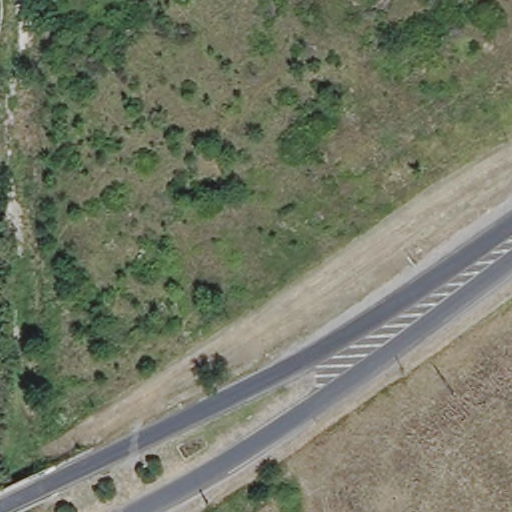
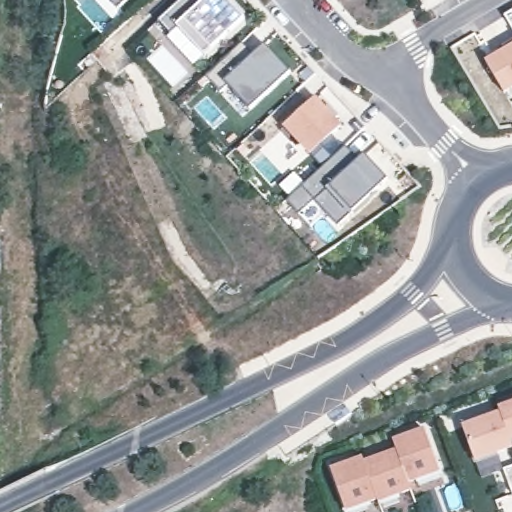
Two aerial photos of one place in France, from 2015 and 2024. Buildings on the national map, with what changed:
new [(113,4),(110,0),(127,0),(117,9),(113,4)]
new [(180,0),(200,0),(202,2),(205,0),(228,0),(245,18),(205,56),(177,27),(170,34),(157,21),(180,0)]
new [(512,11),(512,27),(505,15),(512,11)]
new [(242,42),(254,55),(265,44),(292,72),(250,110),(227,86),(220,92),(205,76),(242,42)]
new [(505,50),(503,47),(512,42),(512,90),(505,94),(485,62),(505,50)]
new [(314,94),(339,121),(309,149),(300,139),(293,145),(278,128),(284,122),(314,94)]
new [(345,146),(358,160),(365,154),(388,180),(338,226),(314,201),(299,214),(286,201),(302,187),(345,146)]
new [(512,403),(512,438),(510,439),(500,412),(498,407),(512,403)]
new [(500,412),(510,439),(512,445),(512,446),(475,460),(462,426),(500,412)]
new [(418,482),(418,478),(408,482),(411,490),(399,494),(400,498),(380,503),(379,500),(378,497),(371,502),(372,506),(350,512),(347,512),(347,508),(331,468),(363,457),(365,462),(397,450),(395,441),(425,431),(440,472),(440,475),(418,482)]

